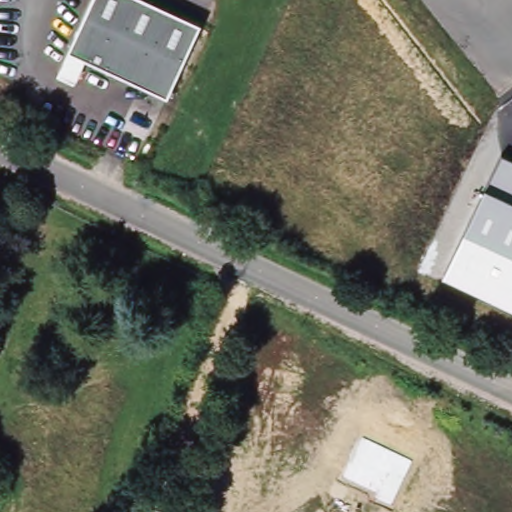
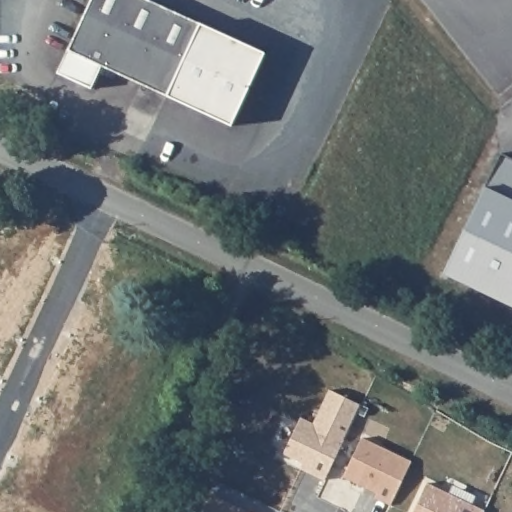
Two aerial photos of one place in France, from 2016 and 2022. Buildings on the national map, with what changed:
unchanged [(56,75),(67,52),(91,0),(147,0),(200,25),(167,98),(84,60),(74,82),(56,75)]
new [(200,25),(264,53),(231,126),(168,95),(200,25)]
unchanged [(512,160),(512,307),(444,275),(486,187),(503,156),(512,160)]
new [(282,454),(299,419),(311,425),(328,391),(359,405),(323,481),(306,473),(298,469),(300,463),(282,454)]
new [(360,438),(410,462),(388,506),(373,498),(375,494),(341,477),(360,438)]
new [(483,511),(483,512),(411,512),(425,484),(483,511)]
new [(244,512),(202,512),(210,496),(244,512)]

